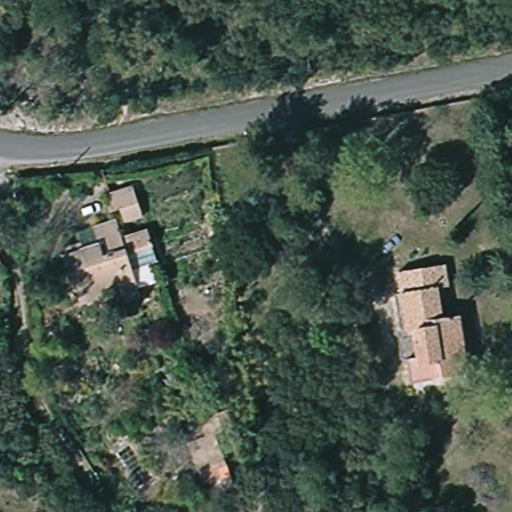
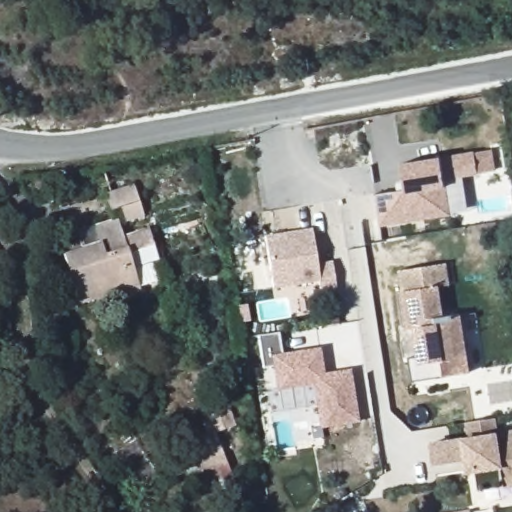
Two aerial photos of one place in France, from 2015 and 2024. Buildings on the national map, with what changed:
new [(379,217),(375,194),(376,193),(404,189),(401,163),(474,151),(489,150),(493,171),(478,173),(444,178),(449,214),(412,220),(380,224),(379,217)]
unchanged [(151,222),(131,224),(129,213),(115,215),(113,198),(144,191),(151,222)]
unchanged [(109,317),(107,307),(81,314),(68,261),(108,250),(103,230),(127,225),(129,241),(152,237),(156,262),(136,268),(146,310),(109,317)]
new [(274,289),(266,236),(312,229),(319,283),(274,289)]
new [(333,261),(336,283),(321,285),(318,263),(333,261)]
unchanged [(458,321),(467,378),(410,386),(408,364),(419,362),(415,328),(408,329),(402,274),(444,269),(446,290),(437,291),(439,323),(458,321)]
new [(320,430),(313,386),(277,391),(273,367),(263,369),(258,336),(279,333),(284,354),(321,348),(324,374),(352,369),(360,424),(320,430)]
unchanged [(212,476),(214,488),(196,494),(183,453),(201,446),(198,433),(206,430),(204,424),(224,417),(231,435),(209,443),(220,475),(212,476)]
new [(477,490),(474,474),(466,475),(464,462),(433,466),(429,441),(459,437),(467,435),(465,423),(497,418),(499,431),(512,429),(512,486),(477,490)]

